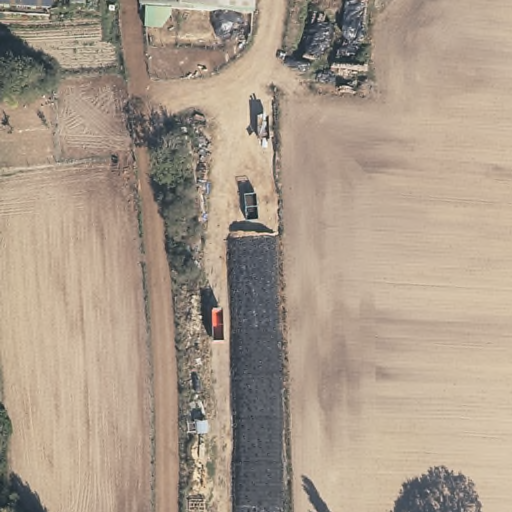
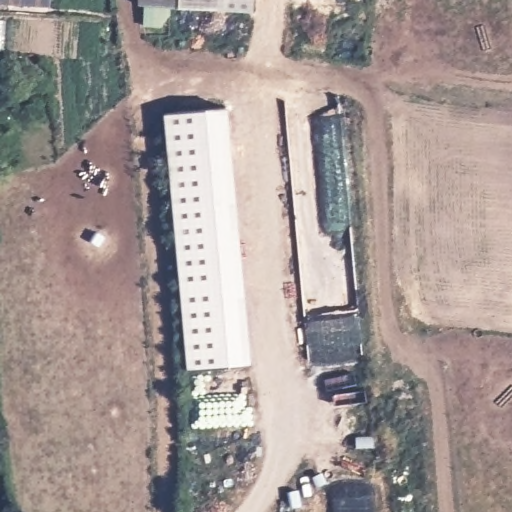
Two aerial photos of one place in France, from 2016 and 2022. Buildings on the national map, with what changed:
unchanged [(0,5),(0,0),(53,0),(53,8),(0,5)]
unchanged [(217,10),(181,8),(172,18),(163,30),(145,28),(148,6),(140,6),(140,0),(257,0),(256,11),(217,10)]
new [(187,369),(164,114),(230,109),(254,363),(187,369)]

